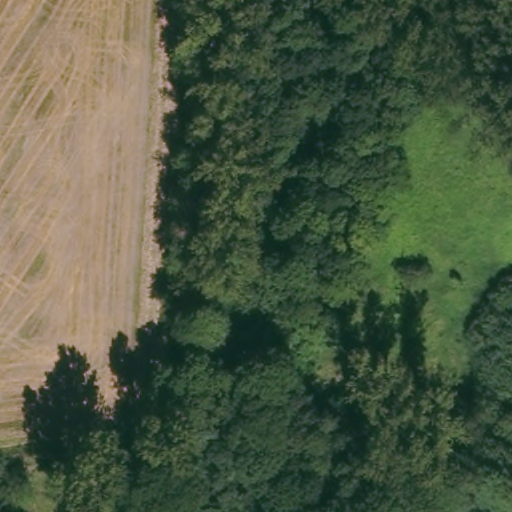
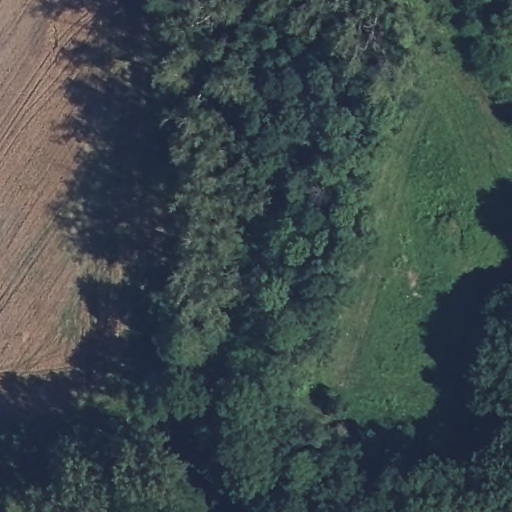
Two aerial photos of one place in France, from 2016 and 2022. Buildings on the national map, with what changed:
unchanged [(511,496),(511,479),(512,479),(512,496),(511,496)]

